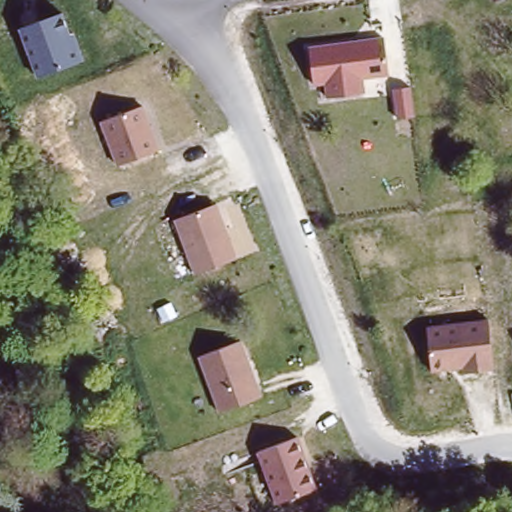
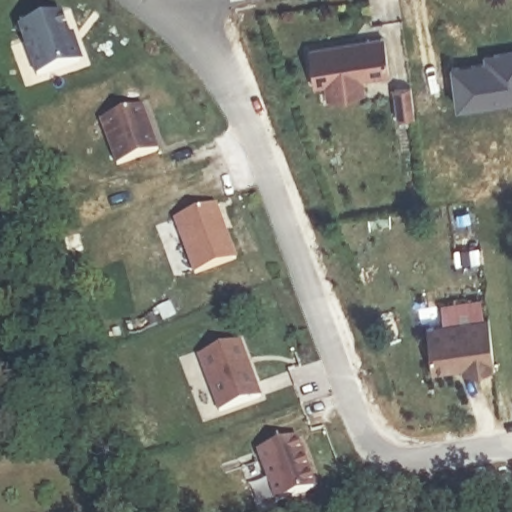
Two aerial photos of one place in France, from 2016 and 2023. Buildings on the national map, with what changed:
unchanged [(82,61),(38,81),(18,29),(60,13),(82,61)]
unchanged [(390,76),(362,80),(364,95),(330,98),(327,87),(314,88),(309,46),(384,35),(390,76)]
new [(451,64),(484,60),(484,52),(512,49),(512,102),(456,109),(451,64)]
unchanged [(416,119),(398,122),(393,88),(409,86),(416,119)]
unchanged [(161,149),(119,167),(100,123),(145,105),(161,149)]
unchanged [(236,260),(194,277),(173,219),(215,205),(236,260)]
unchanged [(494,372),(468,374),(468,369),(433,373),(428,325),(487,318),(494,372)]
unchanged [(261,398),(216,415),(193,355),(239,339),(261,398)]
unchanged [(44,371),(48,390),(34,393),(30,373),(44,371)]
unchanged [(316,492),(278,507),(258,451),(298,436),(316,492)]

